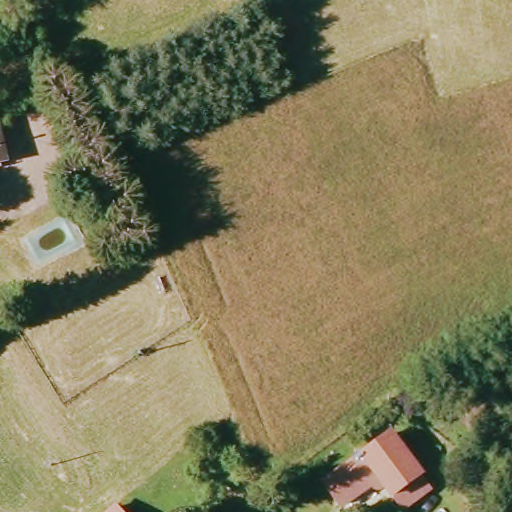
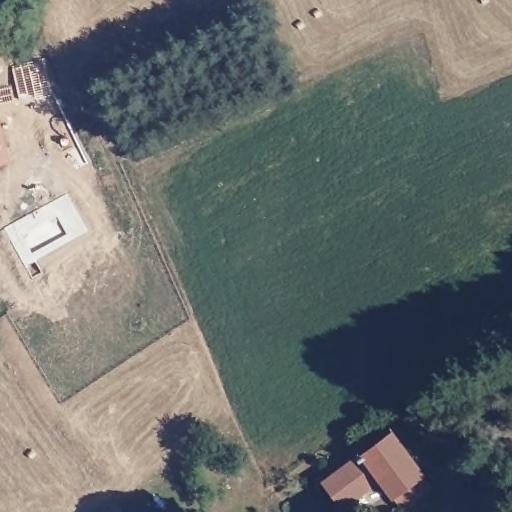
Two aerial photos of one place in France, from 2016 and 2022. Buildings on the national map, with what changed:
unchanged [(48,69),(58,96),(33,106),(21,79),(48,69)]
unchanged [(0,103),(22,98),(24,108),(0,114),(0,103)]
unchanged [(0,139),(6,163),(0,164),(0,139)]
unchanged [(426,481),(400,501),(380,479),(374,483),(366,477),(339,498),(321,474),(386,428),(426,481)]
unchanged [(110,511),(111,512),(109,512),(110,511)]

